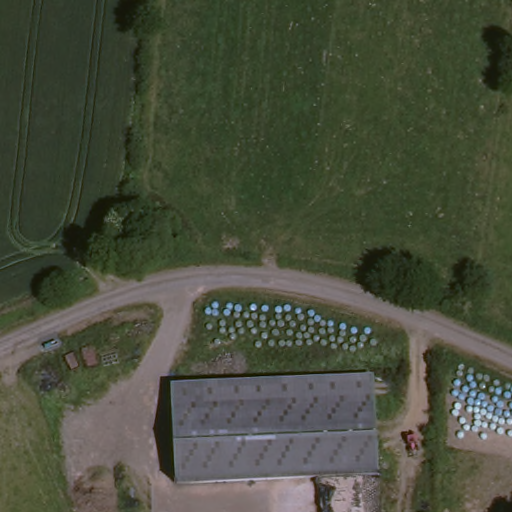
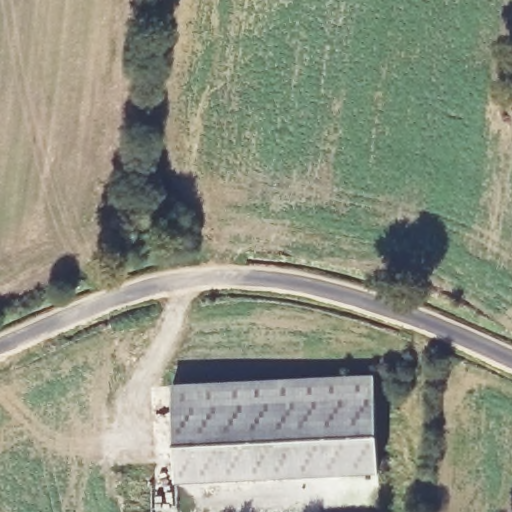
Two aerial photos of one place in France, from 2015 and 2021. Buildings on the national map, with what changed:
unchanged [(177,383),(380,374),(388,473),(185,486),(177,383)]

